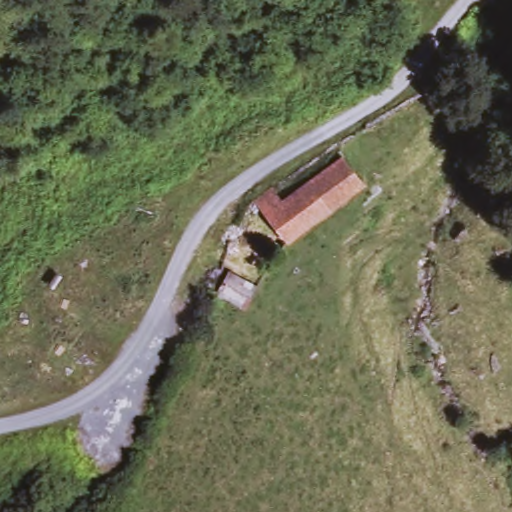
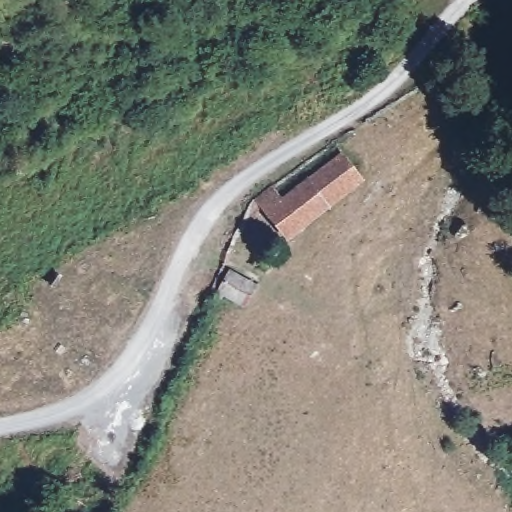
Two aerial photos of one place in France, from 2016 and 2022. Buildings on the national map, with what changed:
unchanged [(370,181),(285,246),(253,201),(272,186),(281,199),(345,149),(370,181)]
unchanged [(260,282),(247,306),(216,293),(229,269),(260,282)]

